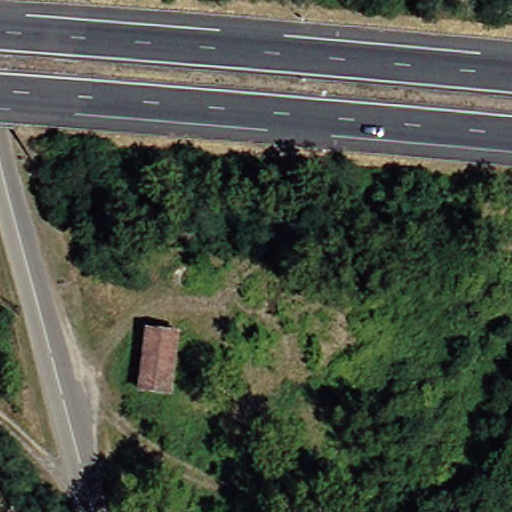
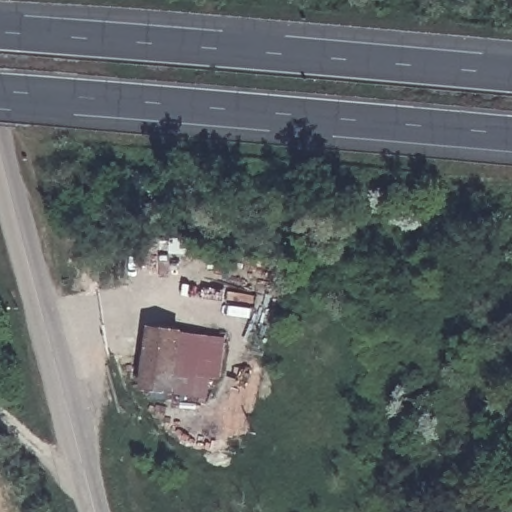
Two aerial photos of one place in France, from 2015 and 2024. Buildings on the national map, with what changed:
unchanged [(151,329),(160,330),(180,332),(179,339),(171,390),(144,386),(151,329)]
new [(171,390),(179,339),(179,335),(225,338),(221,376),(210,376),(209,397),(171,390)]

